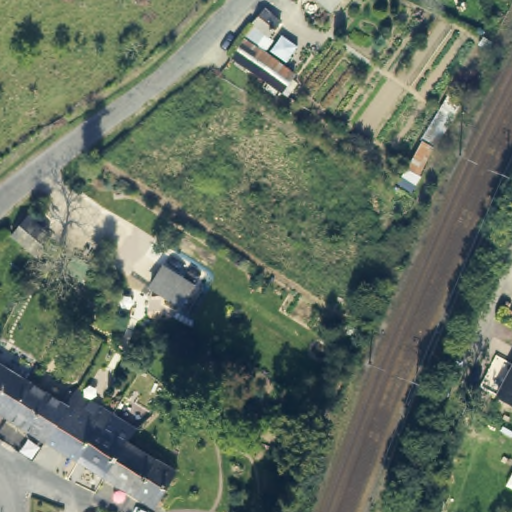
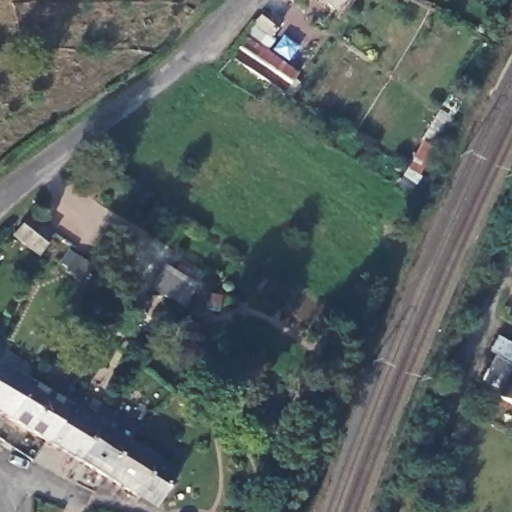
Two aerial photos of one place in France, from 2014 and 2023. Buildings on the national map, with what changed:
unchanged [(318,0),(346,0),(336,14),(318,0)]
unchanged [(227,59),(262,6),(280,20),(274,30),(301,47),(277,91),(227,59)]
unchanged [(43,228),(31,250),(6,236),(17,217),(43,228)]
unchanged [(183,283),(169,304),(140,285),(154,264),(183,283)]
unchanged [(0,414),(0,367),(22,380),(1,415),(0,414)]
unchanged [(494,399),(512,369),(512,411),(494,399)]
unchanged [(88,383),(83,392),(76,388),(81,379),(88,383)]
unchanged [(41,440),(1,415),(22,380),(60,404),(41,440)]
unchanged [(100,477),(73,460),(41,440),(60,404),(69,390),(106,412),(120,421),(133,429),(130,432),(123,443),(170,471),(149,507),(100,477)]

